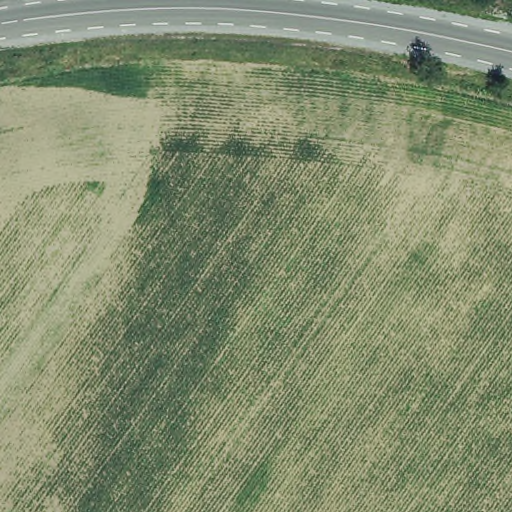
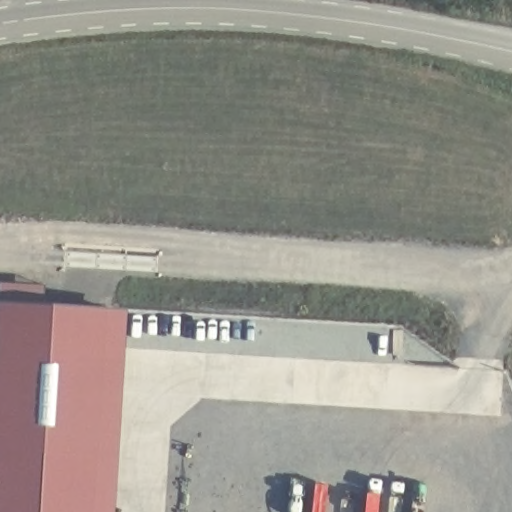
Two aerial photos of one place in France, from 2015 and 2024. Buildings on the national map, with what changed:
new [(44,285),(43,304),(0,301),(0,282),(44,285)]
new [(106,308),(97,460),(0,454),(0,301),(106,308)]
new [(97,460),(93,512),(0,512),(0,454),(97,460)]

